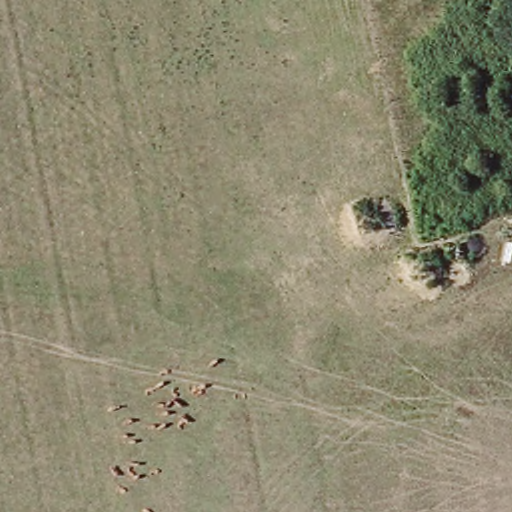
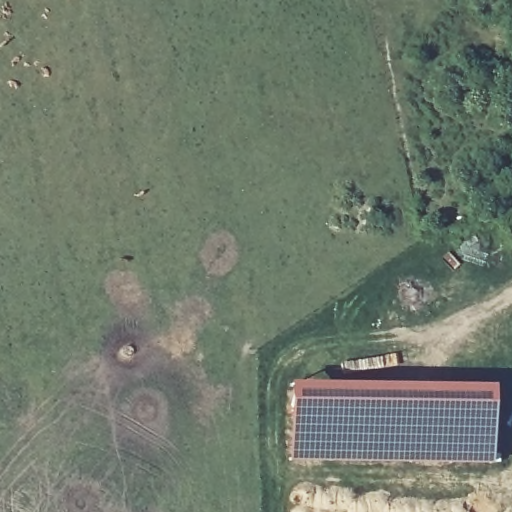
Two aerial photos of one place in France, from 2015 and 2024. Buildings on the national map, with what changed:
new [(315,381),(495,385),(495,464),(290,462),(288,383),(315,381)]

